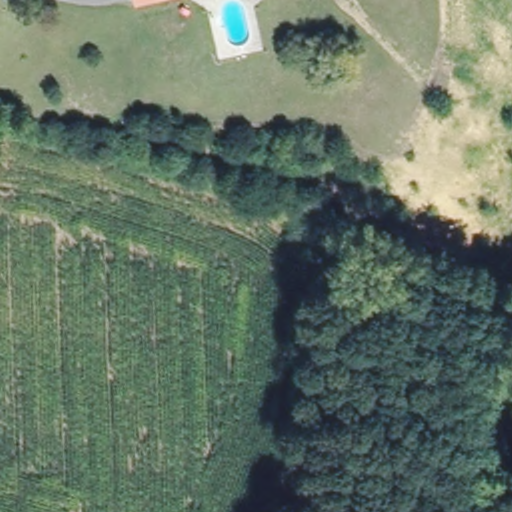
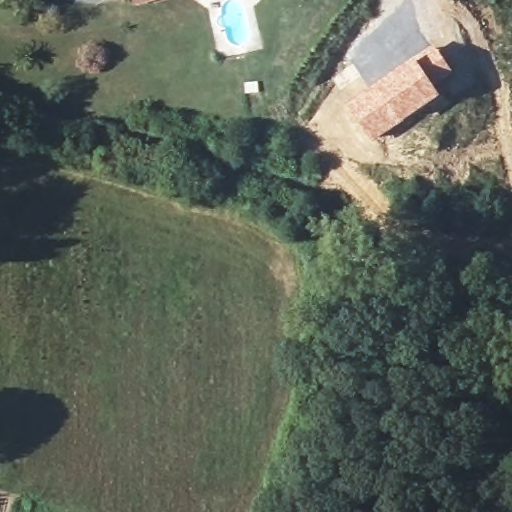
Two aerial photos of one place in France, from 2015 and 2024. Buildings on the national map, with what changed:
new [(403,65),(434,46),(453,73),(435,86),(441,96),(372,142),(346,104),(403,65)]

